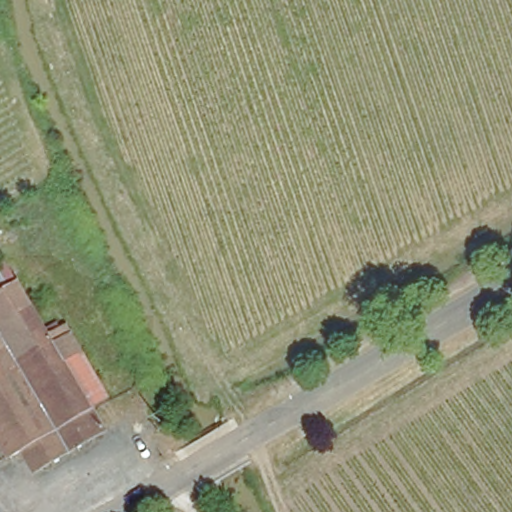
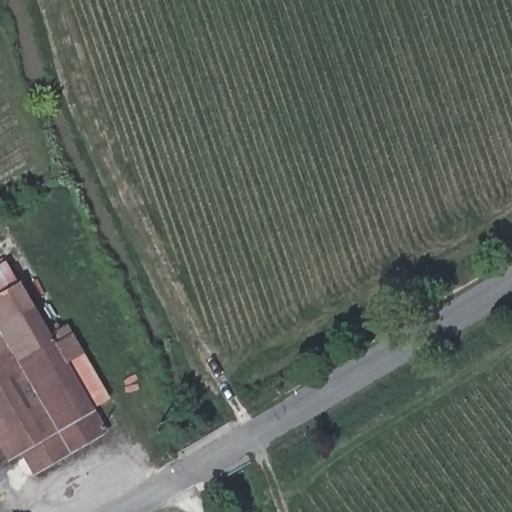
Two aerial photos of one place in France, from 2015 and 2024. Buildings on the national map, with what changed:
unchanged [(0,293),(0,264),(2,263),(15,284),(0,293)]
unchanged [(44,334),(61,325),(67,334),(78,354),(61,364),(86,408),(100,432),(31,472),(18,450),(6,458),(0,448),(0,293),(15,284),(44,334)]
unchanged [(86,408),(61,364),(78,354),(104,398),(86,408)]

